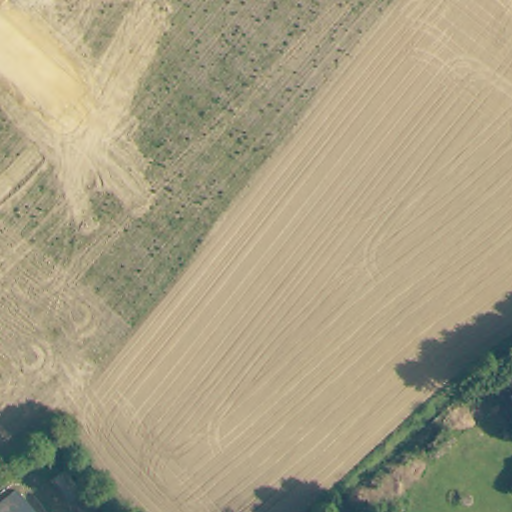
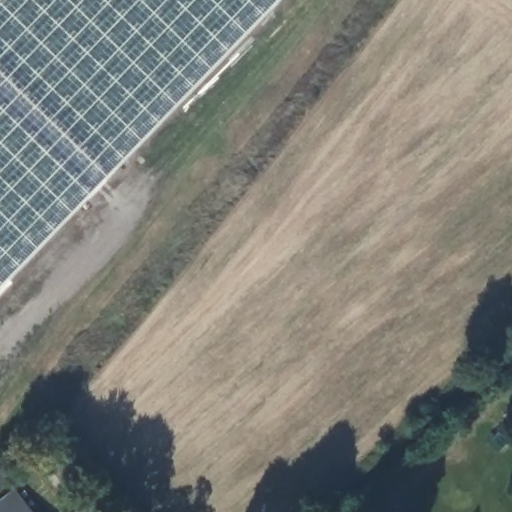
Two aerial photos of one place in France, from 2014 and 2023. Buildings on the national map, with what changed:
new [(0,0),(283,0),(0,291),(0,0)]
unchanged [(0,503),(17,490),(34,512),(0,512),(0,503)]

